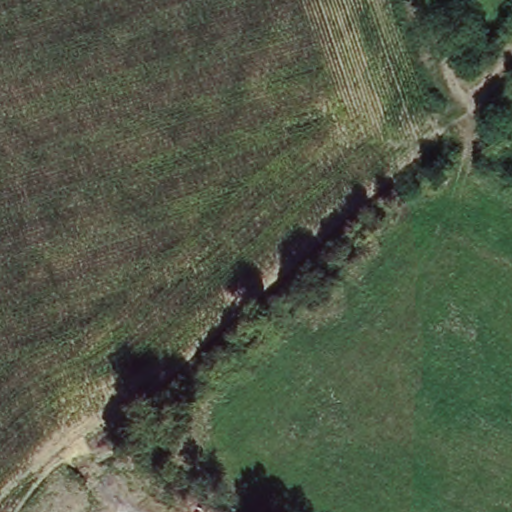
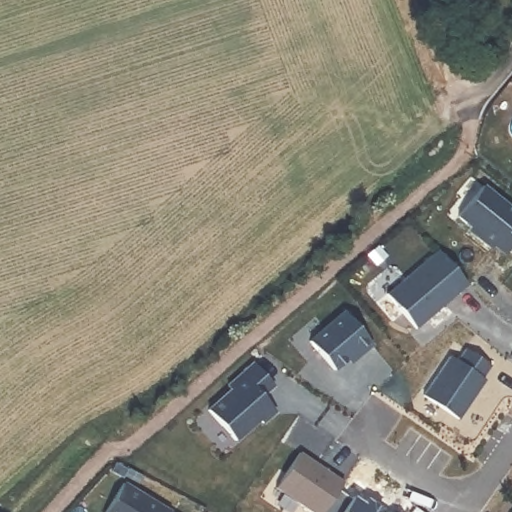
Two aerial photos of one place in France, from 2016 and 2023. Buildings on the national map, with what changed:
new [(512,208),(512,248),(507,256),(495,247),(492,250),(468,232),(470,229),(457,220),(483,186),(512,208)]
new [(469,285),(417,330),(387,295),(438,251),(469,285)]
new [(375,346),(352,365),(348,361),(335,372),(308,341),(345,310),(375,346)]
new [(458,362),(465,350),(493,368),(460,420),(423,397),(450,357),(458,362)]
new [(276,387),(262,397),(277,412),(264,424),(261,421),(237,442),(207,409),(229,389),(227,385),(253,362),(276,387)]
new [(343,481),(321,512),(314,512),(276,490),(301,453),(343,481)]
new [(168,512),(108,512),(125,484),(168,512)]
new [(349,498),(351,497),(361,504),(364,500),(379,511),(378,512),(322,512),(337,491),(349,498)]

